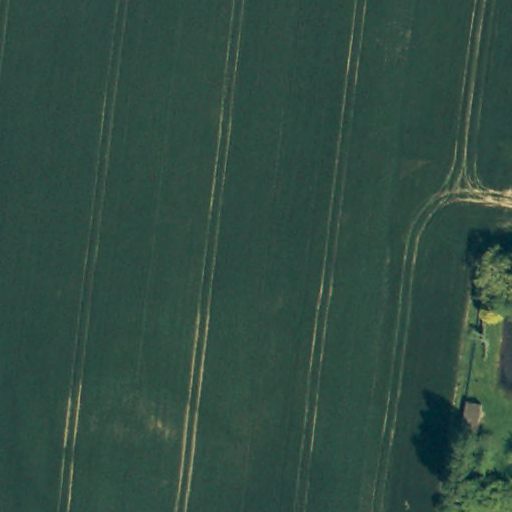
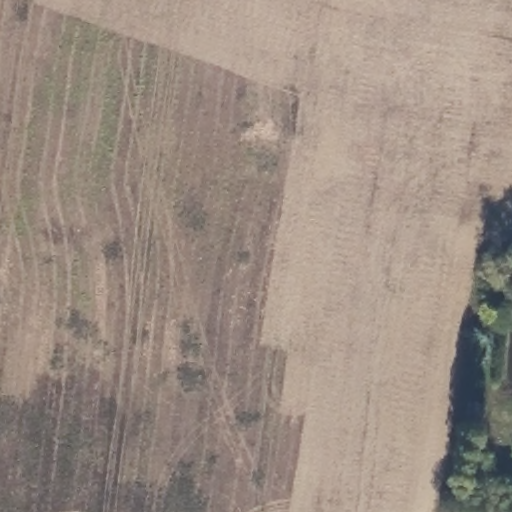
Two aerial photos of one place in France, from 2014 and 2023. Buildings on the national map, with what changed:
unchanged [(469,390),(488,393),(483,421),(464,419),(469,390)]

